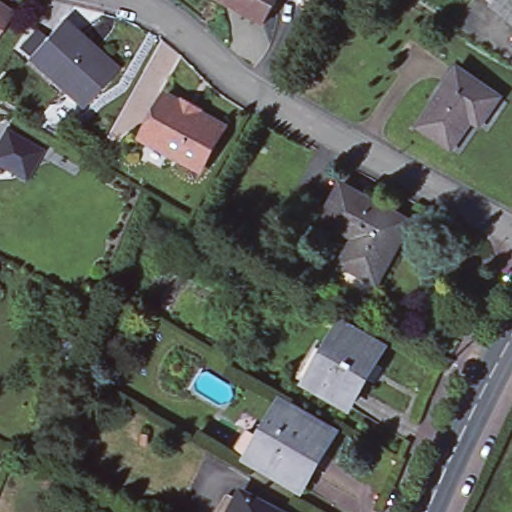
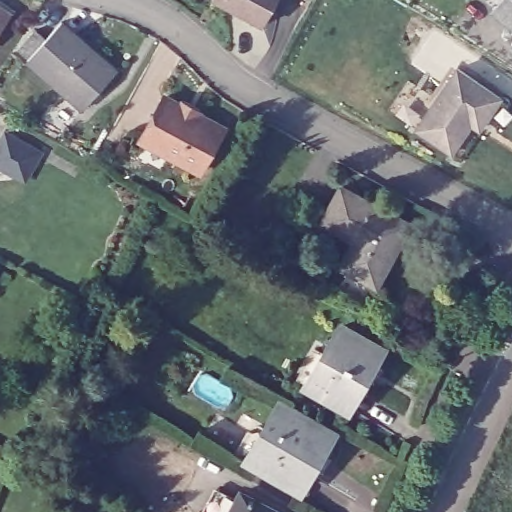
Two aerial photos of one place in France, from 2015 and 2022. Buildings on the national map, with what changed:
unchanged [(218,0),(276,0),(262,24),(218,0)]
unchanged [(489,0),(512,0),(512,19),(493,3),(489,0)]
unchanged [(10,10),(0,26),(0,3),(10,10)]
unchanged [(111,73),(83,104),(30,55),(20,46),(37,26),(47,35),(62,19),(98,52),(116,68),(111,73)]
unchanged [(512,39),(512,43),(510,41),(512,39)]
unchanged [(473,122),(454,151),(420,127),(459,69),(501,97),(486,118),(480,127),(473,122)]
unchanged [(199,175),(140,142),(165,97),(182,106),(185,102),(200,111),(198,115),(224,130),(199,175)]
unchanged [(42,147),(26,175),(0,160),(0,142),(8,128),(42,147)]
unchanged [(322,225),(342,190),(410,227),(402,241),(399,239),(390,255),(393,257),(375,288),(339,268),(353,242),(322,225)]
unchanged [(377,349),(378,346),(382,348),(347,407),(343,405),(345,402),(307,379),(339,326),(377,349)]
unchanged [(330,432),(310,465),(312,466),(298,489),(247,458),(235,451),(247,430),(260,437),(280,402),(330,432)]
unchanged [(274,512),(229,512),(240,493),(274,512)]

